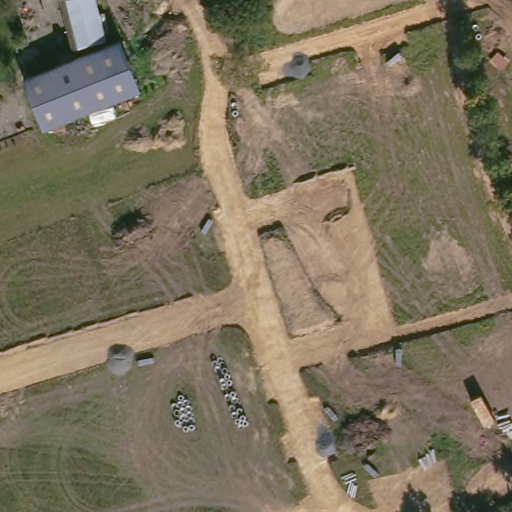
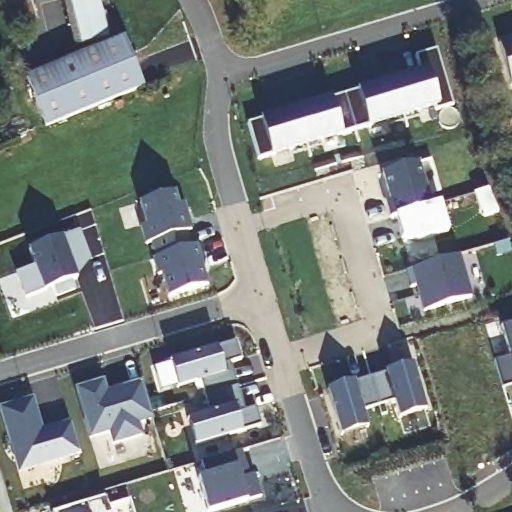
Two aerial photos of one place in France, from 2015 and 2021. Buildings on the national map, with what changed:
unchanged [(80,42),(62,0),(92,0),(105,30),(80,42)]
unchanged [(118,41),(124,54),(140,88),(61,125),(48,131),(38,110),(25,84),(118,41)]
new [(436,50),(452,105),(439,105),(368,126),(366,123),(343,130),(344,134),(270,155),(269,152),(258,158),(248,122),(259,117),(330,97),(334,96),(354,91),(357,87),(419,70),(416,56),(436,50)]
new [(173,187),(177,200),(182,199),(190,225),(184,227),(189,241),(156,252),(151,237),(146,239),(140,220),(145,219),(139,197),(173,187)]
new [(34,265),(28,249),(79,229),(89,257),(71,265),(76,277),(71,279),(74,287),(47,298),(44,290),(24,296),(15,271),(34,265)]
new [(156,252),(189,241),(199,239),(204,255),(199,256),(206,280),(169,291),(161,269),(158,270),(153,253),(156,252)]
new [(452,250),(464,292),(419,306),(411,280),(405,282),(401,266),(452,250)]
new [(501,387),(493,360),(508,355),(499,325),(512,321),(512,384),(501,387)]
new [(235,333),(241,352),(225,358),(240,405),(255,401),(261,419),(197,439),(188,412),(209,406),(199,374),(179,380),(170,354),(235,333)]
new [(409,360),(423,404),(397,412),(392,396),(360,406),(364,422),(339,430),(325,386),(409,360)]
new [(103,375),(108,392),(127,386),(125,381),(142,376),(153,413),(138,418),(141,430),(114,438),(109,426),(90,432),(75,384),(103,375)]
new [(11,439),(0,403),(31,394),(42,426),(70,417),(80,448),(25,465),(19,467),(11,439)]

